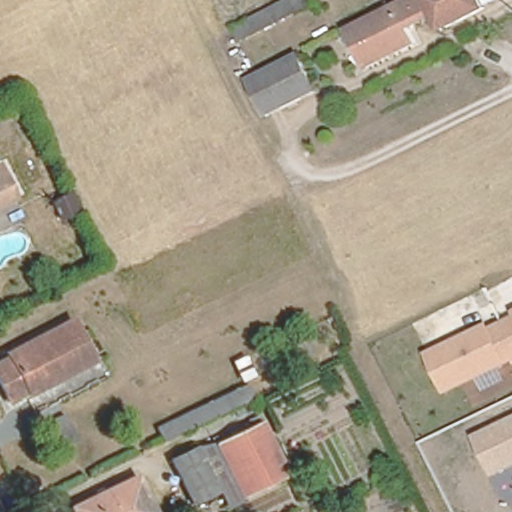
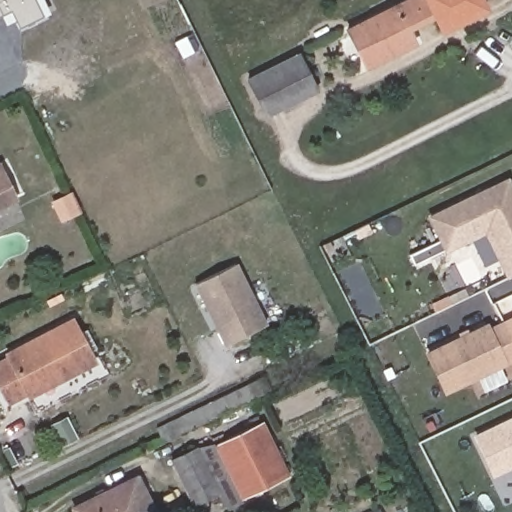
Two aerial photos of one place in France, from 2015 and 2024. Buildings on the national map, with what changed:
new [(17,28),(10,11),(0,16),(0,0),(43,0),(48,12),(17,28)]
unchanged [(470,0),(473,7),(433,25),(429,15),(406,26),(410,36),(363,58),(345,22),(391,0),(470,0)]
unchanged [(302,56),(314,81),(262,106),(250,81),(302,56)]
new [(443,252),(426,216),(507,177),(512,186),(512,275),(505,278),(483,233),(443,252)]
unchanged [(8,200),(0,204),(0,183),(8,200)]
new [(223,346),(194,285),(236,263),(266,323),(223,346)]
unchanged [(425,352),(512,311),(512,363),(446,394),(425,352)]
unchanged [(64,316),(88,360),(21,392),(18,387),(0,395),(0,353),(0,346),(64,316)]
unchanged [(258,391),(172,431),(170,432),(163,418),(256,377),(261,389),(258,391)]
unchanged [(472,435),(512,416),(512,469),(493,477),(472,435)]
unchanged [(202,440),(206,444),(264,418),(283,475),(227,502),(218,487),(190,501),(166,458),(202,440)]
unchanged [(131,475),(149,512),(70,512),(66,505),(131,475)]

